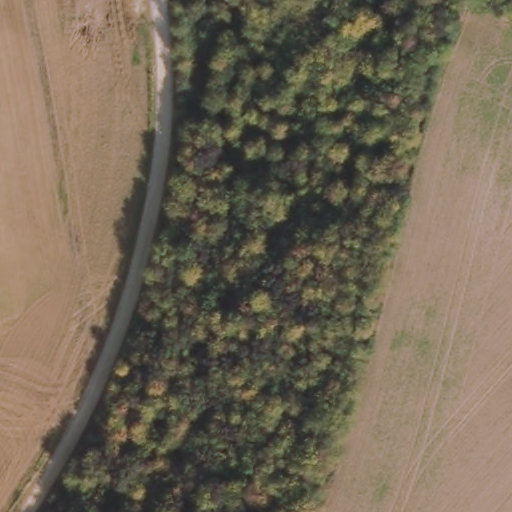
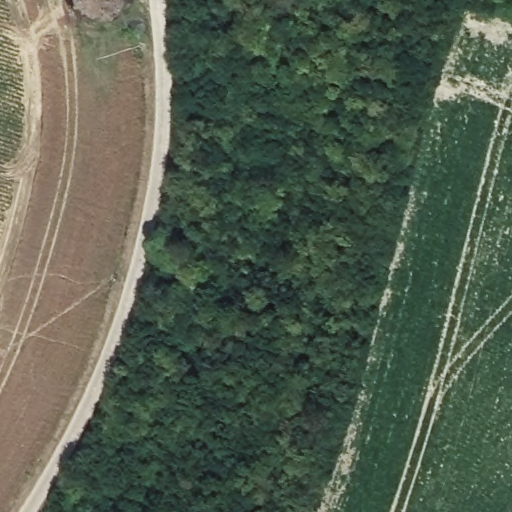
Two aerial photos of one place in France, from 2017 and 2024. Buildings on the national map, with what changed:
[]

